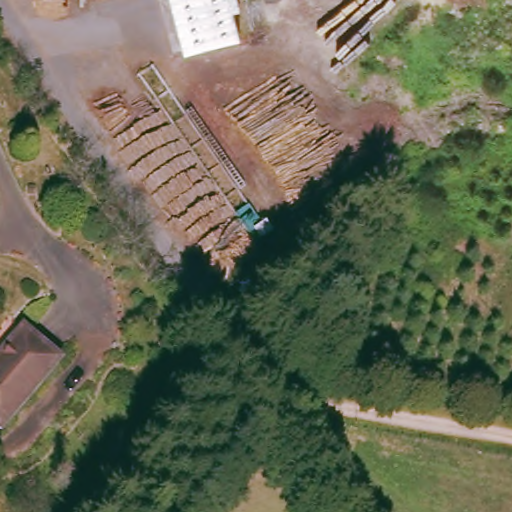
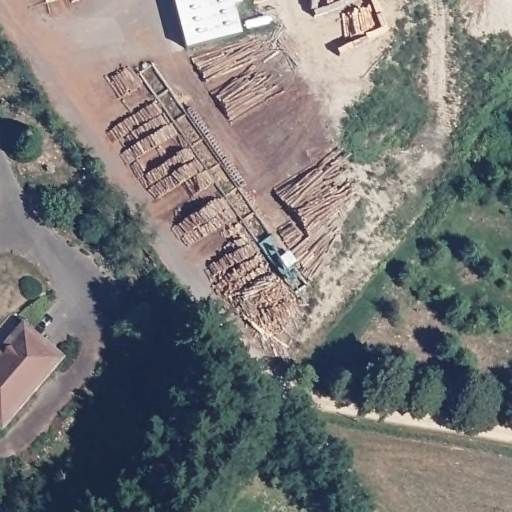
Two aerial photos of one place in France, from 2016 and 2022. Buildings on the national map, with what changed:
unchanged [(178,0),(234,0),(245,35),(194,50),(178,0)]
unchanged [(64,363),(0,427),(0,362),(31,331),(64,363)]

